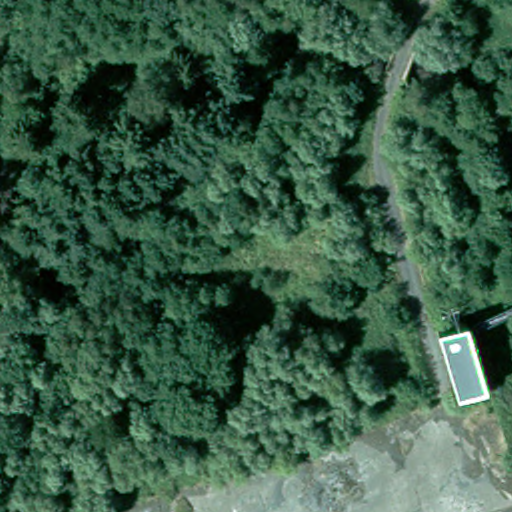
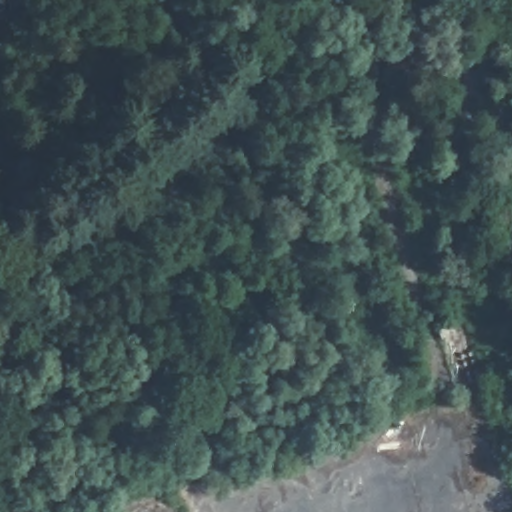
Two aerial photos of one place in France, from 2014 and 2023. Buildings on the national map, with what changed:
unchanged [(486,382),(458,391),(437,325),(466,316),(486,382)]

